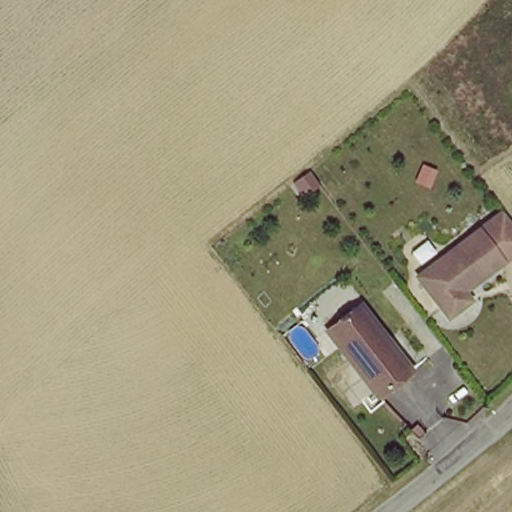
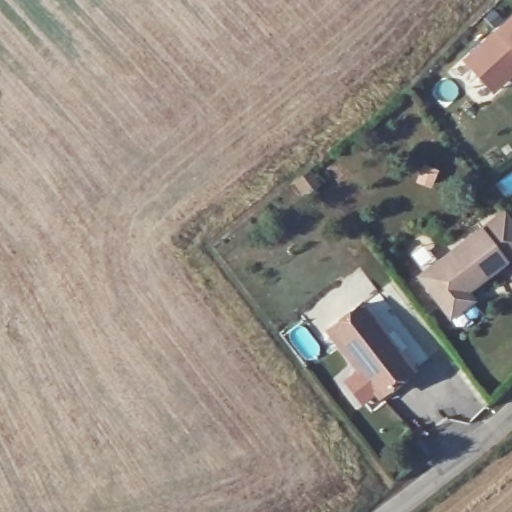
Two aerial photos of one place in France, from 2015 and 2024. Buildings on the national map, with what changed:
new [(492,93),(462,61),(512,14),(512,75),(492,93)]
unchanged [(452,313),(445,305),(421,273),(506,207),(512,215),(512,253),(468,287),(475,296),(452,313)]
unchanged [(328,326),(363,298),(415,367),(380,393),(328,326)]

